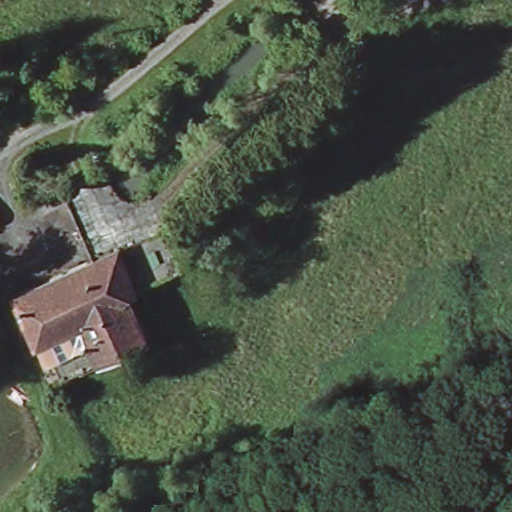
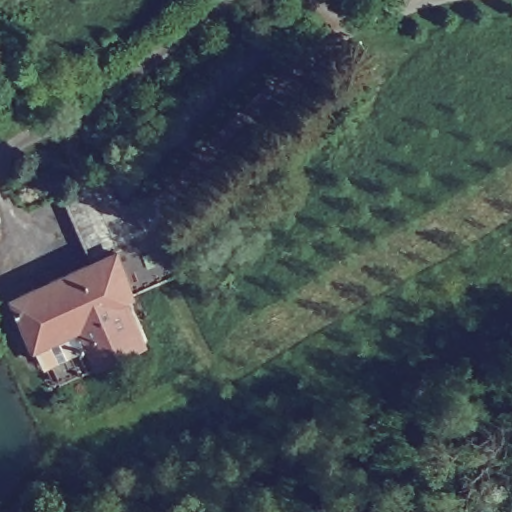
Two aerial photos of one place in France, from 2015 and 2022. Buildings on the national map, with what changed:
unchanged [(36,352),(28,337),(6,289),(86,255),(79,240),(73,226),(68,211),(61,197),(55,183),(83,171),(88,186),(94,200),(100,214),(106,229),(113,244),(158,225),(174,264),(121,287),(141,334),(93,354),(50,371),(43,349),(36,352)]

